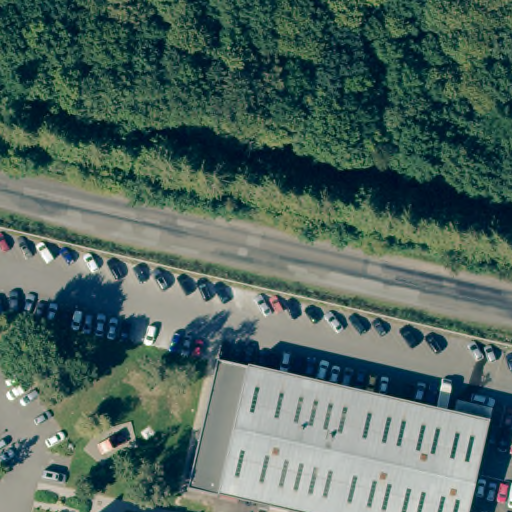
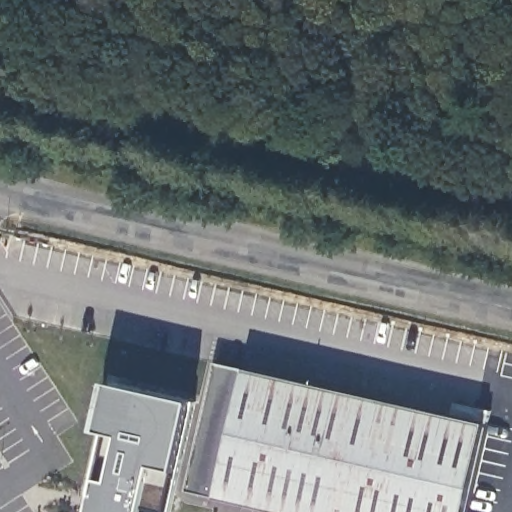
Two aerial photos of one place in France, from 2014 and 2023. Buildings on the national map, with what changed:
unchanged [(454,512),(282,512),(204,495),(234,367),(390,402),(474,422),(454,512)]
new [(178,471),(168,512),(146,506),(145,512),(94,512),(102,480),(113,435),(98,432),(109,382),(195,403),(178,471)]

